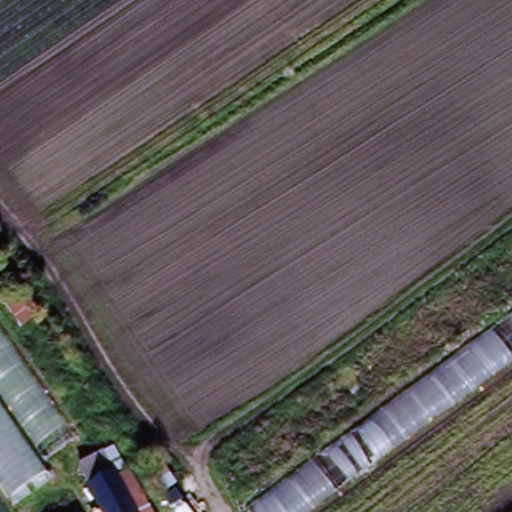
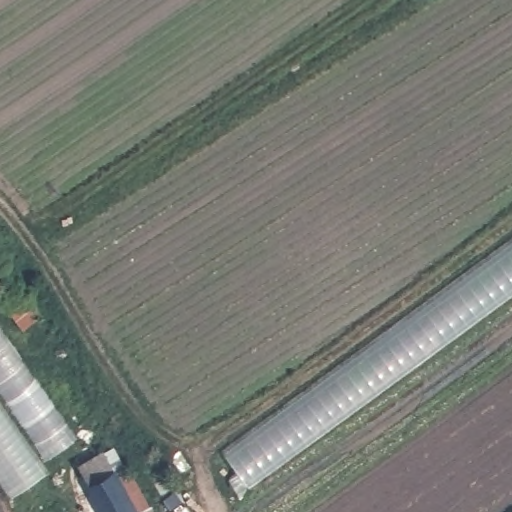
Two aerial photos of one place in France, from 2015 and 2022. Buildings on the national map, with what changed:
demolished [(240,507),(250,498),(216,460),(512,238),(512,371),(312,512),(245,512),(240,507)]
unchanged [(87,438),(47,460),(0,392),(0,315),(87,438)]
unchanged [(48,468),(9,493),(0,480),(0,400),(48,468)]
unchanged [(87,485),(75,466),(99,452),(107,448),(148,512),(102,512),(87,485)]
unchanged [(150,497),(135,473),(163,458),(175,479),(190,505),(178,512),(158,512),(150,497)]

